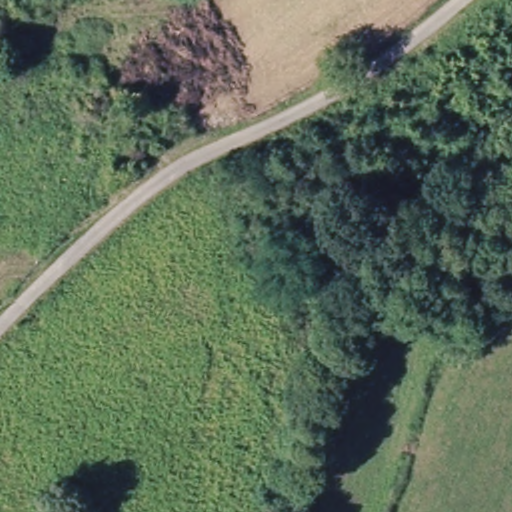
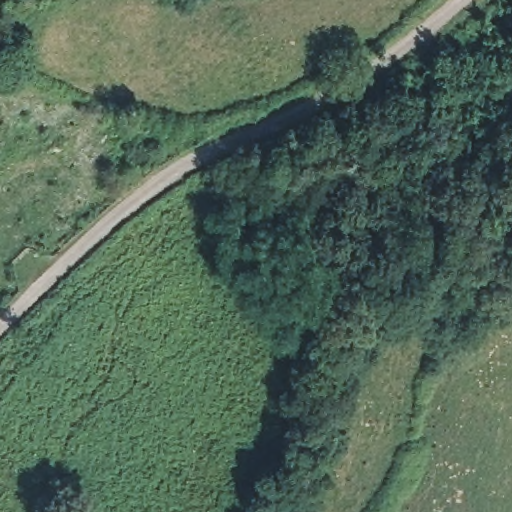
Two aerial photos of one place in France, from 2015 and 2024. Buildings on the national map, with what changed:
[]

